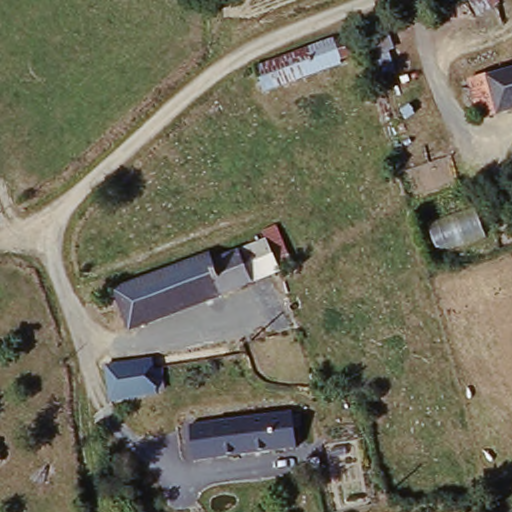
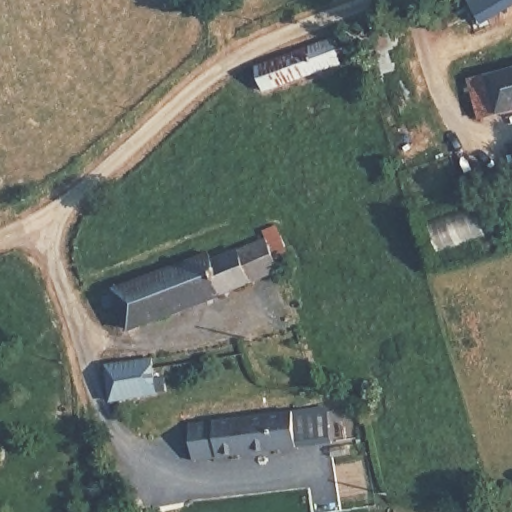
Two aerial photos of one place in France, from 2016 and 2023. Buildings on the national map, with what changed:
unchanged [(467,0),(474,0),(469,3),(467,0)]
unchanged [(364,50),(321,65),(312,42),(356,26),(364,50)]
unchanged [(321,65),(270,82),(262,59),(312,42),(321,65)]
unchanged [(512,65),(512,106),(479,114),(471,76),(512,65)]
unchanged [(243,244),(272,232),(286,268),(259,279),(243,244)]
unchanged [(110,295),(120,291),(118,289),(215,249),(218,255),(243,244),(259,279),(231,290),(136,329),(124,302),(115,305),(110,295)]
unchanged [(149,356),(153,391),(108,396),(103,362),(149,356)]
unchanged [(357,383),(382,376),(392,403),(368,411),(357,383)]
unchanged [(191,422),(314,409),(318,444),(194,455),(191,422)]
unchanged [(1,459),(0,460),(0,456),(1,459)]

